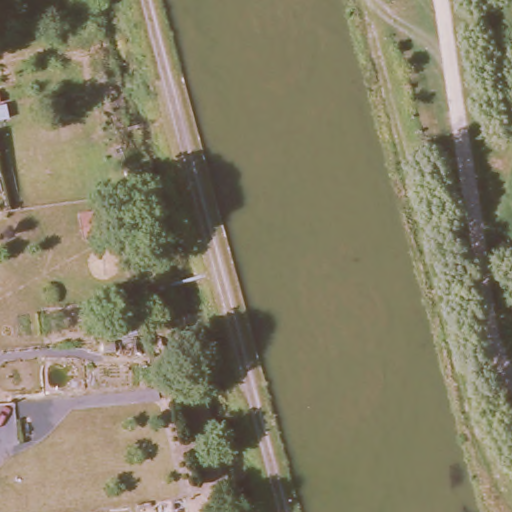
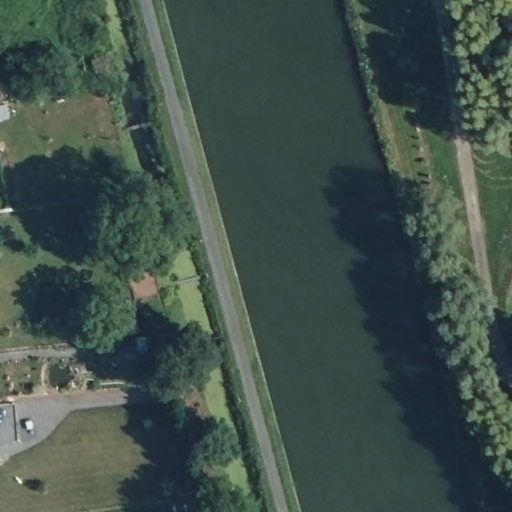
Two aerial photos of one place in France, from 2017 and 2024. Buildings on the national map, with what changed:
unchanged [(82,219),(90,218),(110,215),(114,239),(94,242),(87,243),(82,219)]

